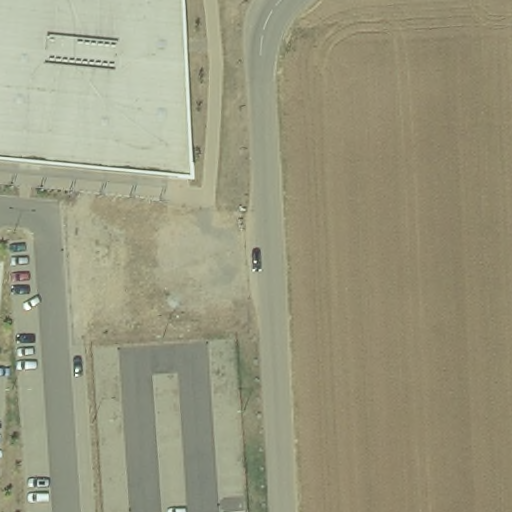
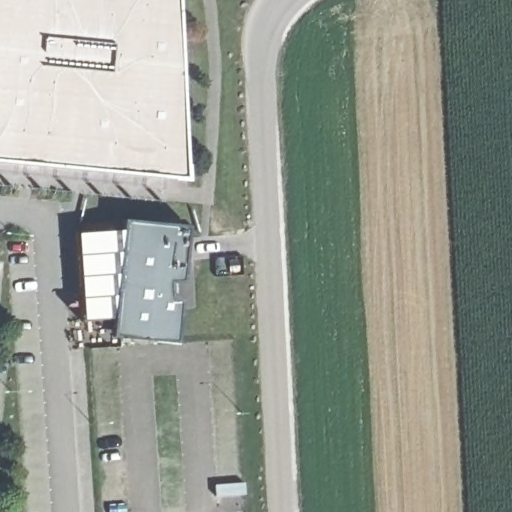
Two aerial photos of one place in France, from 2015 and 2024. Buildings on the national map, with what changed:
unchanged [(0,161),(0,0),(180,0),(188,179),(0,161)]
new [(120,338),(111,337),(113,324),(113,320),(82,322),(75,232),(121,229),(123,219),(179,225),(189,225),(183,283),(171,284),(171,299),(176,299),(182,299),(178,334),(178,344),(120,338)]

